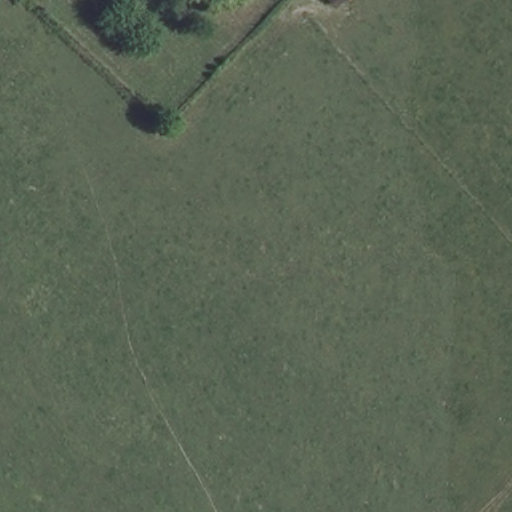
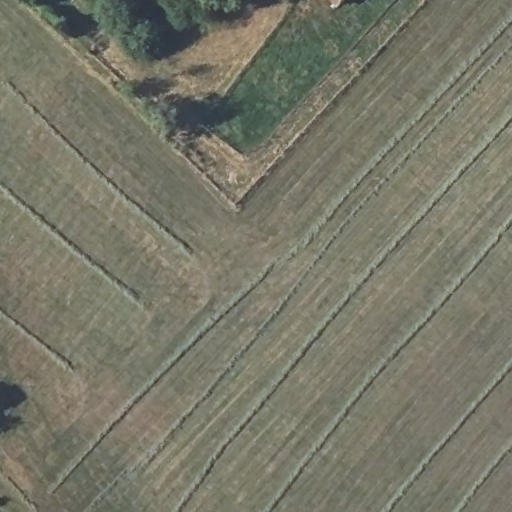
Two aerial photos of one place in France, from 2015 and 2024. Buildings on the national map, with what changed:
unchanged [(340,1),(339,0),(340,0),(340,1)]

